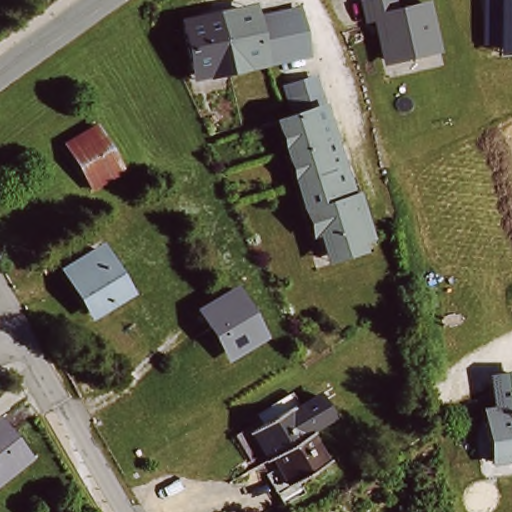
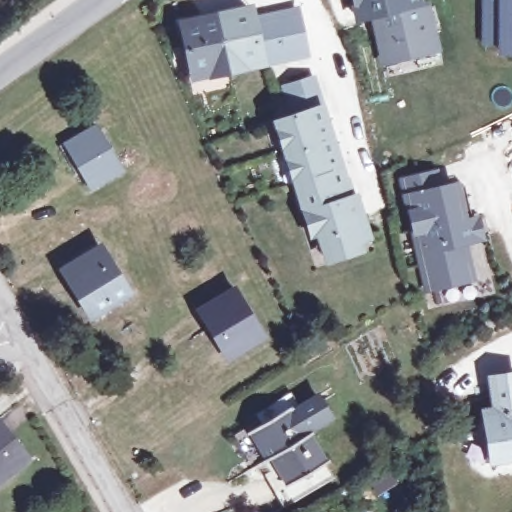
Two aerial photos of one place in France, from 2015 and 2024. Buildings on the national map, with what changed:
unchanged [(388,0),(392,15),(423,7),(433,50),(385,61),(375,19),(363,22),(359,5),(377,0),(388,0)]
unchanged [(512,0),(512,54),(497,54),(497,46),(479,45),(479,0),(512,0)]
unchanged [(243,14),(245,20),(289,11),(298,56),(253,65),(252,56),(234,60),(236,69),(203,76),(202,67),(183,71),(173,29),(243,14)]
unchanged [(315,79),(329,124),(324,125),(348,200),(351,199),(357,218),(363,217),(370,239),(327,253),(321,232),(314,235),(307,214),(314,211),(310,198),(303,200),(298,185),(305,182),(300,167),(293,169),(288,154),(294,151),(289,137),(283,139),(278,123),(296,117),(286,89),(315,79)]
unchanged [(123,171),(91,190),(85,179),(80,182),(59,147),(82,134),(83,136),(98,128),(123,171)]
new [(426,294),(400,179),(434,168),(439,186),(459,181),(468,217),(481,214),(487,241),(467,246),(477,283),(426,294)]
unchanged [(127,293),(95,313),(68,270),(100,250),(127,293)]
unchanged [(236,291),(265,338),(238,355),(226,351),(220,342),(221,335),(216,326),(211,329),(201,312),(236,291)]
unchanged [(512,379),(512,461),(497,463),(490,422),(489,414),(501,412),(496,381),(512,379)]
unchanged [(288,409),(290,412),(317,395),(331,418),(304,435),(306,438),(273,458),(269,460),(251,431),(288,409)]
unchanged [(0,485),(0,417),(35,460),(0,485)]
unchanged [(306,438),(310,436),(327,465),(290,487),(273,458),(306,438)]

